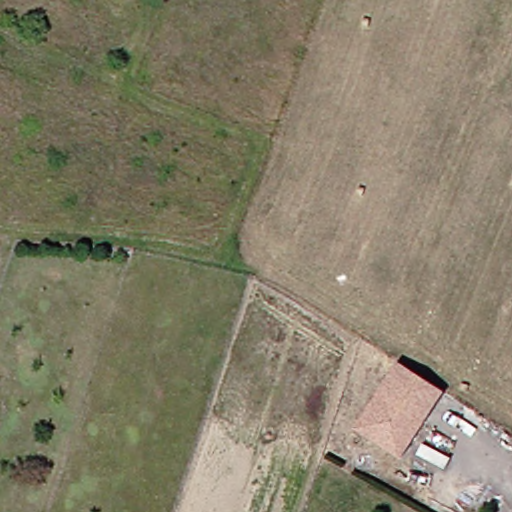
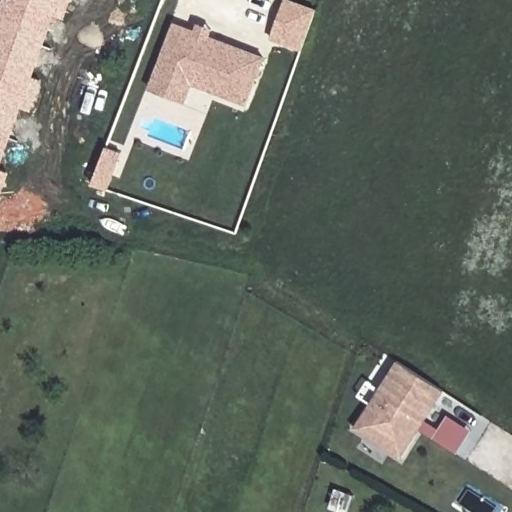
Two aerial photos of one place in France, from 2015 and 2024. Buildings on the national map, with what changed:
new [(73,0),(66,19),(55,15),(34,77),(44,80),(32,112),(22,109),(1,169),(11,172),(0,204),(0,11),(4,0),(73,0)]
new [(302,51),(272,41),(286,0),(292,0),(317,9),(302,51)]
new [(172,26),(193,34),(196,27),(209,32),(206,39),(261,61),(243,107),(172,79),(166,95),(147,88),(154,72),(172,26)]
new [(109,191),(92,185),(108,147),(124,152),(109,191)]
unchanged [(410,372),(441,392),(398,459),(352,430),(395,362),(410,372)]

